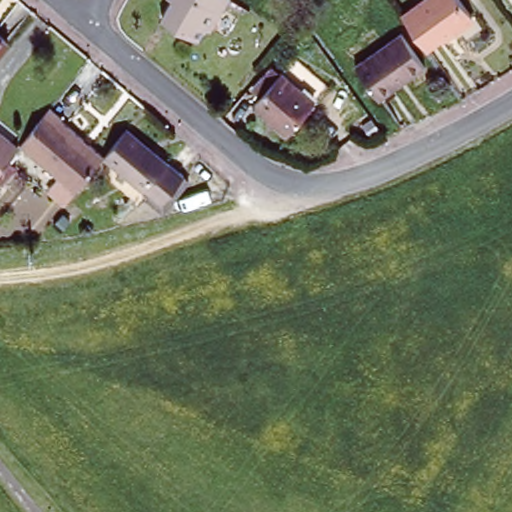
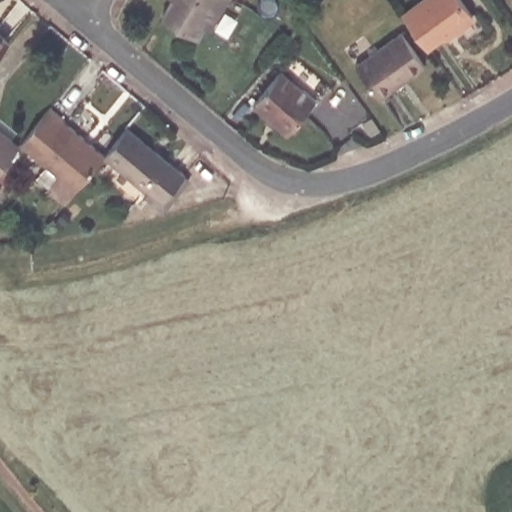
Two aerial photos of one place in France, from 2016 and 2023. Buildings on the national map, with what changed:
unchanged [(208,30),(202,26),(194,39),(163,20),(174,0),(226,0),(208,30)]
unchanged [(417,0),(464,0),(471,9),(425,43),(403,11),(417,0)]
unchanged [(399,28),(421,58),(376,91),(354,61),(399,28)]
unchanged [(0,48),(0,36),(6,41),(0,48)]
unchanged [(314,93),(289,126),(254,100),(279,66),(314,93)]
unchanged [(105,147),(78,182),(23,136),(50,100),(65,112),(63,114),(105,147)]
unchanged [(185,166),(164,194),(105,147),(126,120),(185,166)]
unchanged [(0,162),(0,124),(19,139),(0,162)]

